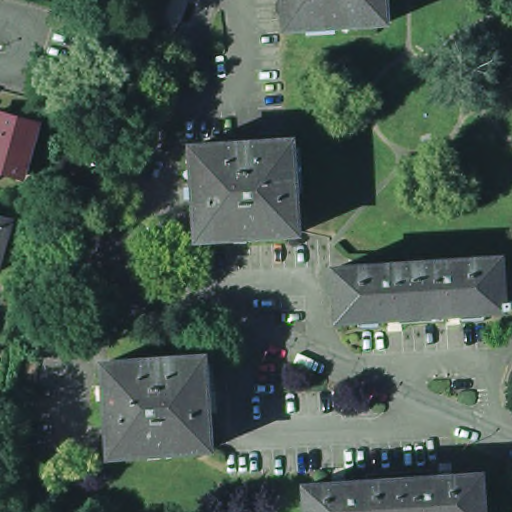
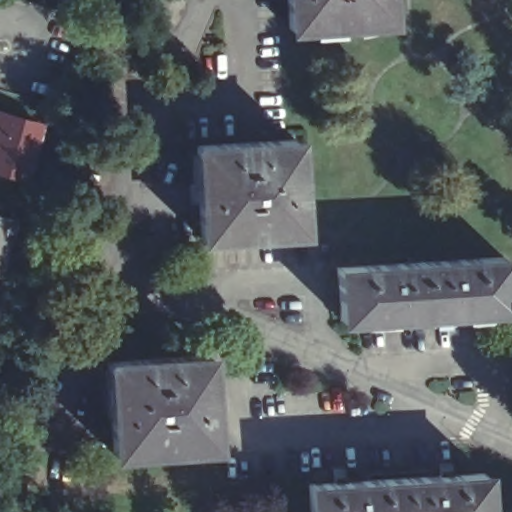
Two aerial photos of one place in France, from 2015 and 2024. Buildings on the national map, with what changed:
unchanged [(388,0),(390,21),(288,28),(286,0),(388,0)]
unchanged [(40,123),(25,176),(0,168),(0,112),(40,123)]
unchanged [(196,137),(298,131),(303,225),(201,231),(196,137)]
unchanged [(12,219),(12,222),(17,224),(13,237),(8,237),(0,264),(0,215),(12,219)]
unchanged [(442,318),(442,312),(420,313),(417,261),(502,256),(502,269),(505,308),(460,311),(460,317),(442,318)]
unchanged [(382,322),(382,316),(337,318),(335,267),(417,261),(420,313),(400,315),(400,321),(382,322)]
unchanged [(512,308),(505,308),(502,269),(512,268),(512,308)]
unchanged [(108,365),(210,359),(216,453),(115,460),(108,365)]
unchanged [(392,479),(481,473),(484,512),(395,512),(392,479)]
unchanged [(306,485),(392,479),(395,512),(308,512),(306,485)]

